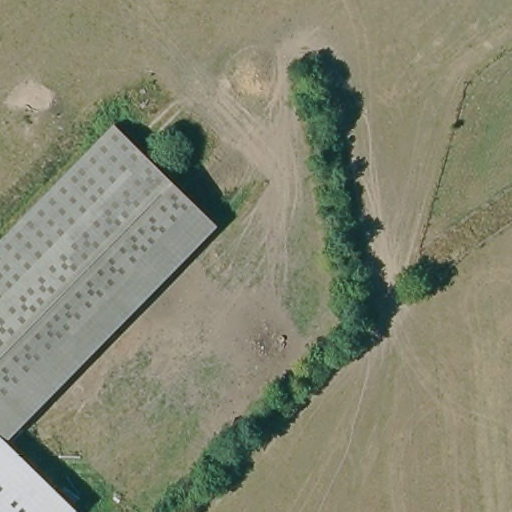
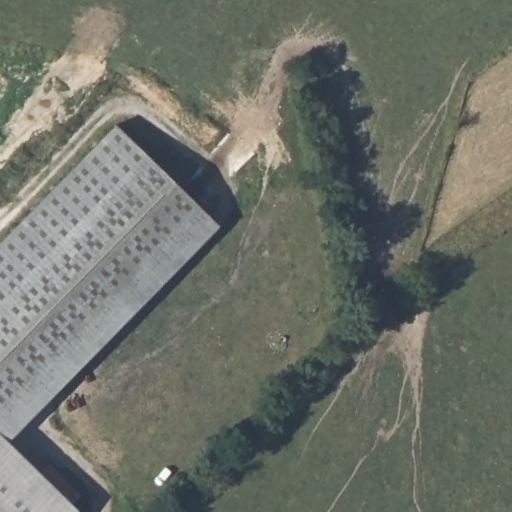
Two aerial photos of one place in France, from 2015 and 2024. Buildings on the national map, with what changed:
unchanged [(0,431),(0,255),(120,135),(208,222),(0,431)]
unchanged [(77,511),(77,512),(0,512),(0,439),(77,511)]

